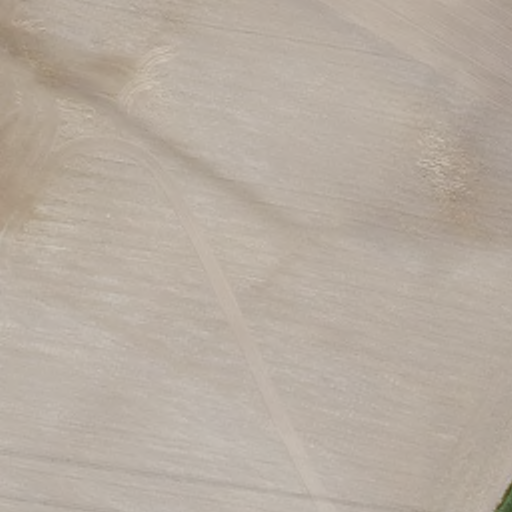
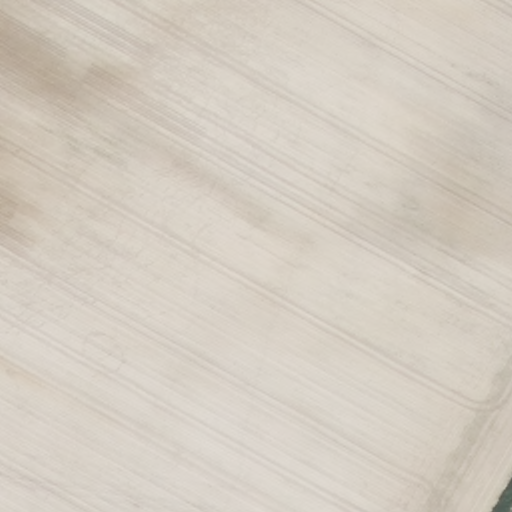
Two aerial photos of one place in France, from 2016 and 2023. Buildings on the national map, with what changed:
[]

